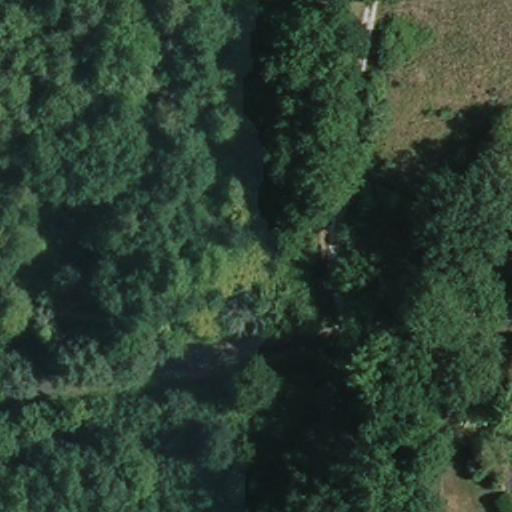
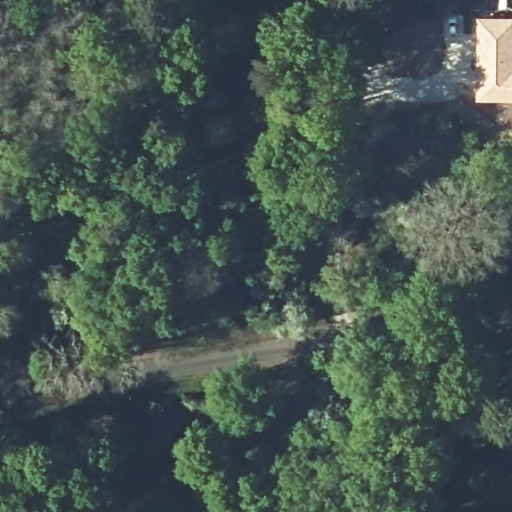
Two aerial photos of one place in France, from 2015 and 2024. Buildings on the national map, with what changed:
new [(476,16),(512,16),(512,100),(475,100),(476,16)]

